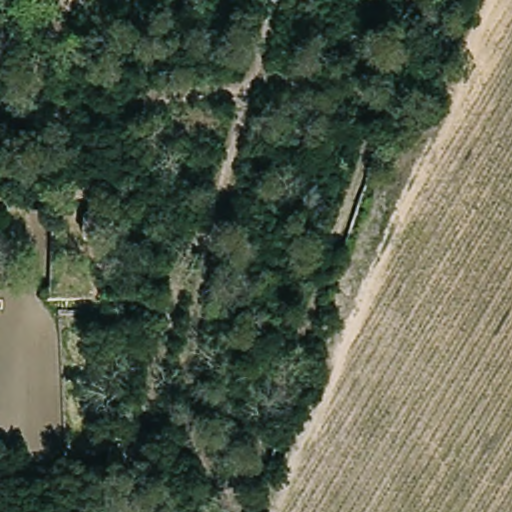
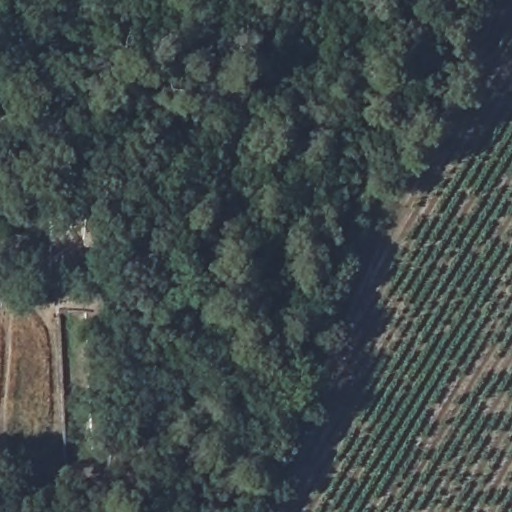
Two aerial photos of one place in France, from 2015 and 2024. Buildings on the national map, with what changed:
unchanged [(84,242),(86,218),(111,221),(109,242),(84,242)]

